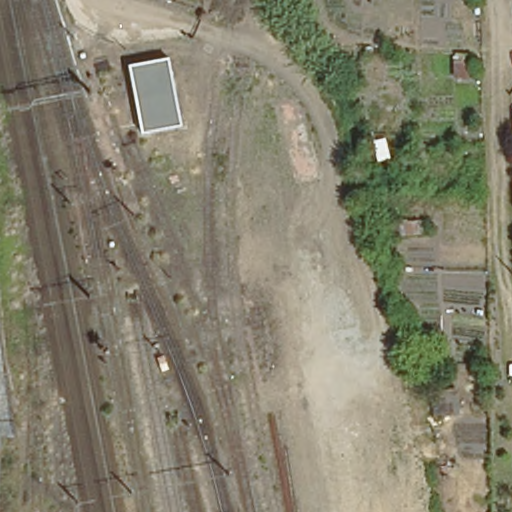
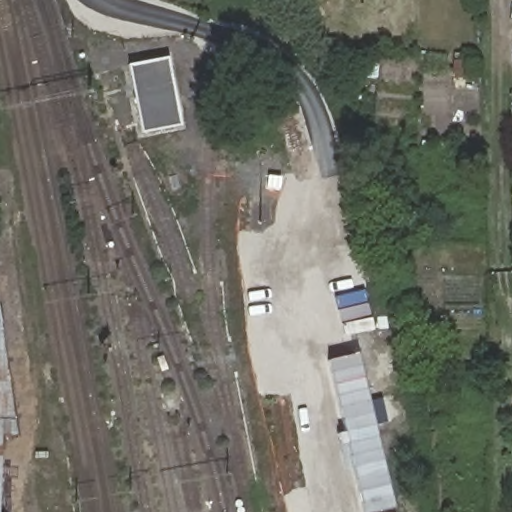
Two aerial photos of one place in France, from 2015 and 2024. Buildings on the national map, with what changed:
unchanged [(126,65),(165,57),(179,126),(139,134),(126,65)]
unchanged [(511,258),(512,258),(512,270),(511,271),(511,258)]
new [(328,361),(357,353),(394,507),(375,512),(363,512),(328,361)]
unchanged [(0,432),(0,369),(10,432),(0,432)]
unchanged [(432,420),(427,392),(454,388),(459,415),(432,420)]

